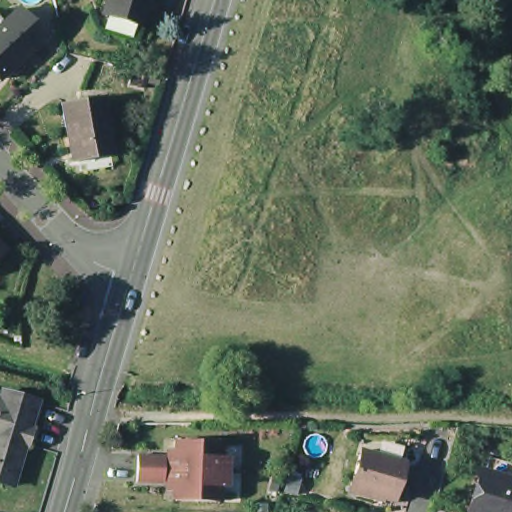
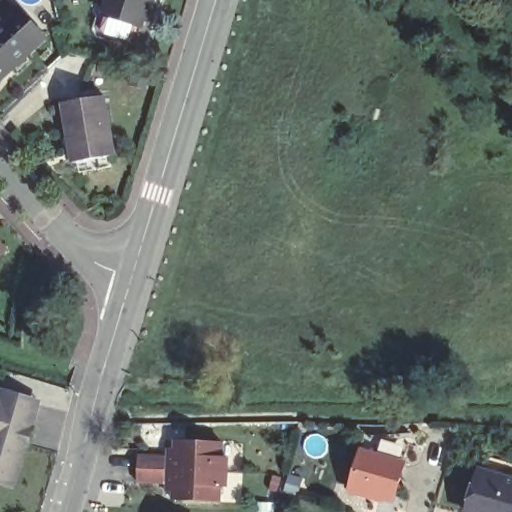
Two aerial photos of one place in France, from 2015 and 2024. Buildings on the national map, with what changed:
unchanged [(108,0),(148,0),(140,29),(102,18),(108,0)]
unchanged [(0,80),(0,27),(18,10),(45,39),(0,80)]
unchanged [(60,104),(105,95),(116,154),(72,163),(60,104)]
unchanged [(3,254),(0,257),(0,250),(3,254)]
unchanged [(1,404),(3,396),(33,404),(40,406),(27,452),(25,451),(14,489),(0,485),(0,404),(1,404)]
unchanged [(172,472),(173,442),(221,444),(220,459),(227,459),(227,474),(172,472)]
unchanged [(137,456),(164,457),(163,471),(163,484),(135,483),(137,470),(137,456)]
unchanged [(348,493),(358,456),(401,468),(390,506),(348,493)]
unchanged [(482,472),(487,458),(512,465),(512,512),(470,512),(482,472)]
unchanged [(226,488),(220,488),(219,503),(171,501),(172,472),(227,474),(226,488)]

